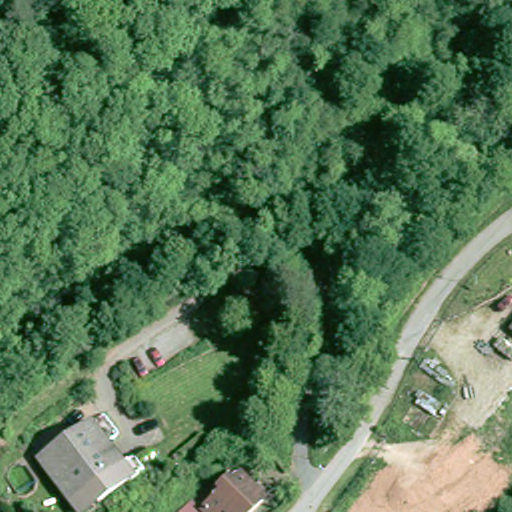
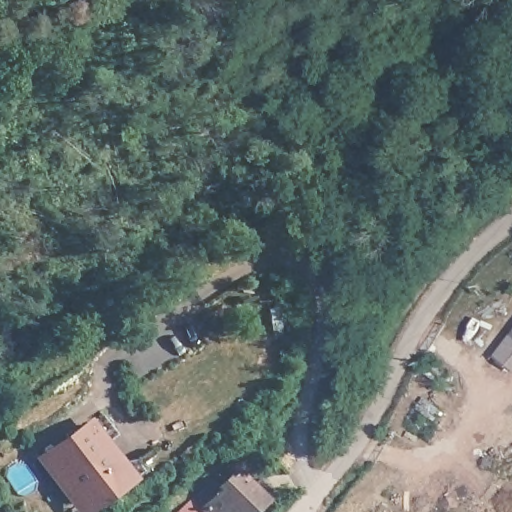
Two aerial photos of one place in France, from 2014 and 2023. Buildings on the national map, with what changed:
unchanged [(65,502),(38,465),(85,430),(113,468),(128,466),(137,477),(92,510),(88,512),(72,512),(65,502)]
unchanged [(192,505),(206,492),(216,503),(234,487),(232,484),(241,477),(243,480),(251,473),(272,497),(256,512),(242,512),(235,504),(226,512),(184,512),(192,505)]

